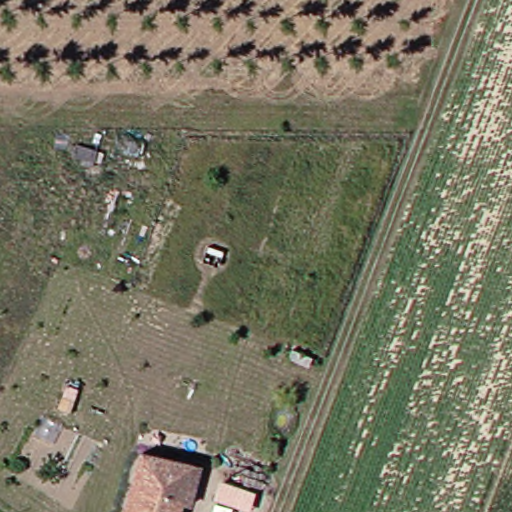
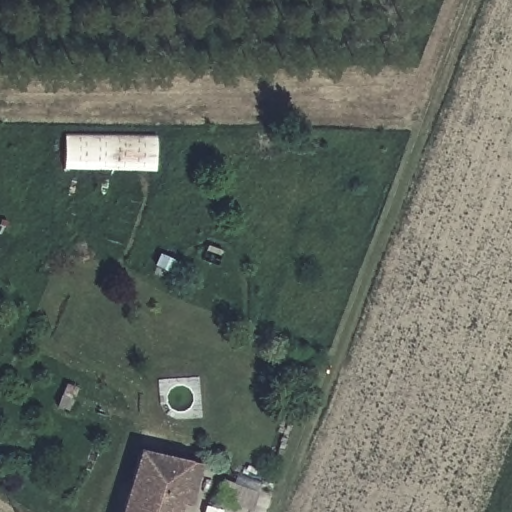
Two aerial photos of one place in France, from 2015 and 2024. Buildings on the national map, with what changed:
new [(156,139),(156,171),(66,169),(66,137),(156,139)]
unchanged [(132,455),(192,473),(178,512),(114,512),(132,455)]

